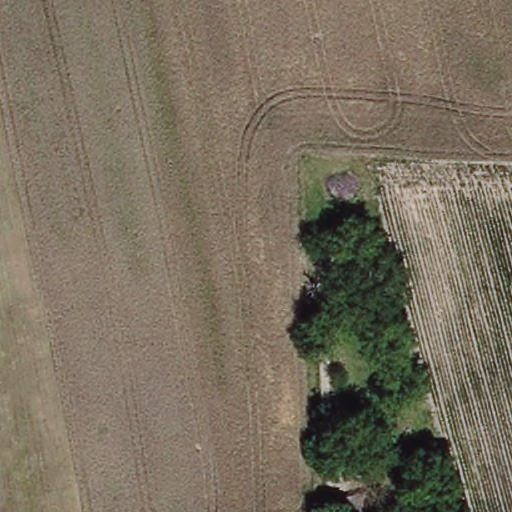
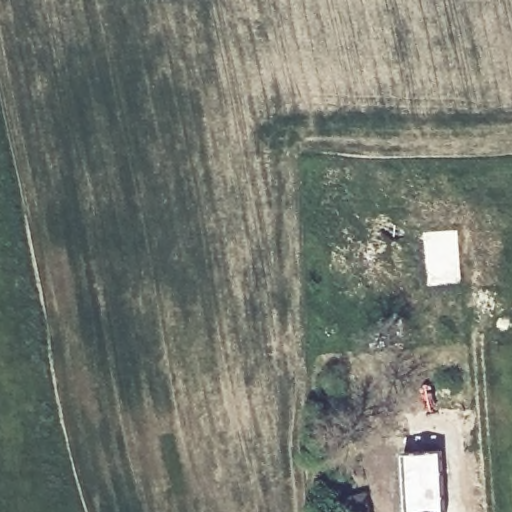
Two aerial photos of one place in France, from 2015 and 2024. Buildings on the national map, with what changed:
new [(441,449),(444,512),(408,512),(403,451),(441,449)]
new [(367,490),(370,512),(344,512),(340,497),(367,490)]

